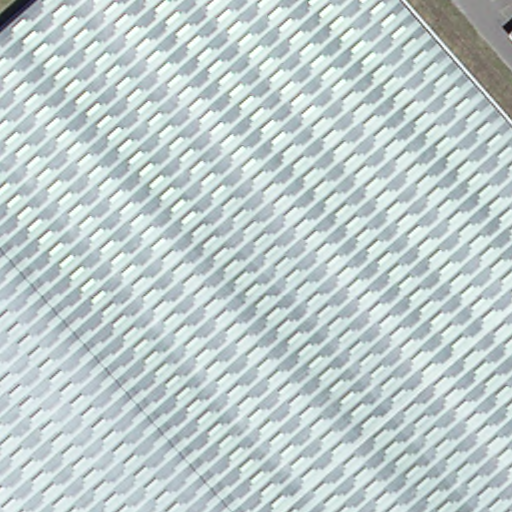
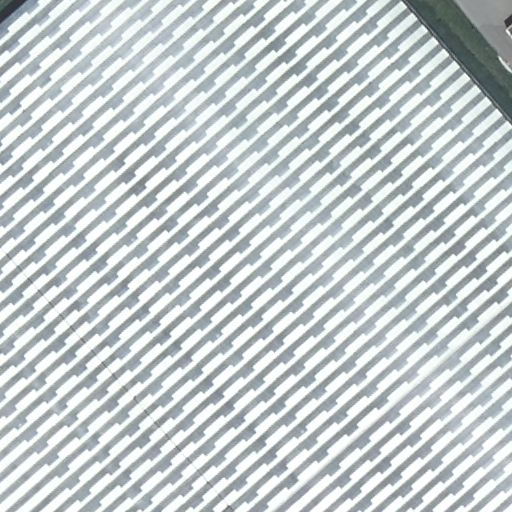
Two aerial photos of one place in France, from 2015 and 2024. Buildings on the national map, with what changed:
unchanged [(393,0),(512,134),(512,512),(227,512),(0,255),(0,19),(22,0),(393,0)]
unchanged [(498,31),(512,19),(512,47),(498,31)]
unchanged [(0,255),(227,512),(0,512),(0,255)]

